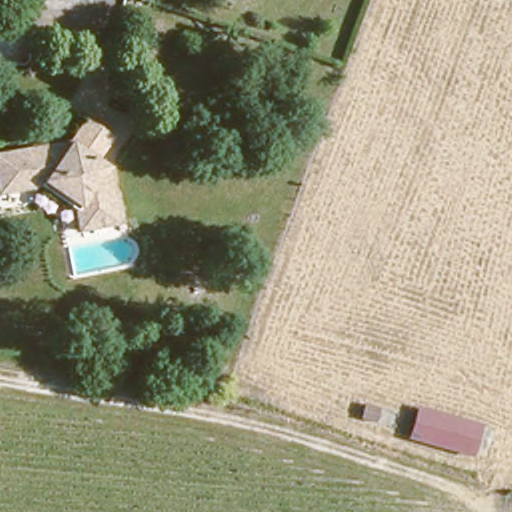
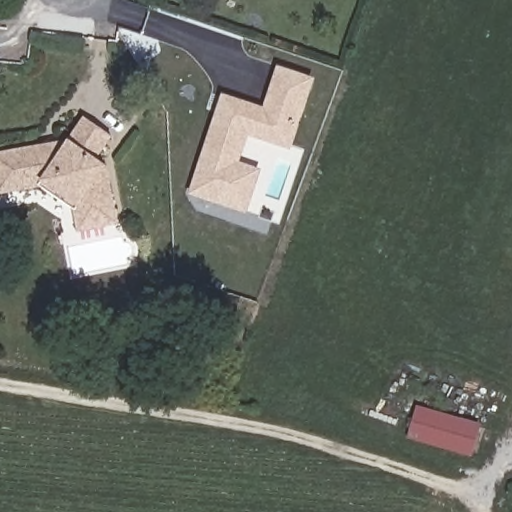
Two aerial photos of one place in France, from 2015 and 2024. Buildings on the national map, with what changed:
new [(277,66),(315,78),(291,151),(249,137),(240,161),(262,169),(248,214),(188,194),(222,94),(264,106),(277,66)]
unchanged [(63,195),(29,176),(28,180),(0,185),(0,145),(36,140),(64,136),(78,106),(106,122),(97,141),(111,150),(108,155),(112,188),(115,213),(88,217),(66,219),(63,195)]
unchanged [(484,419),(470,451),(406,433),(413,400),(484,419)]

